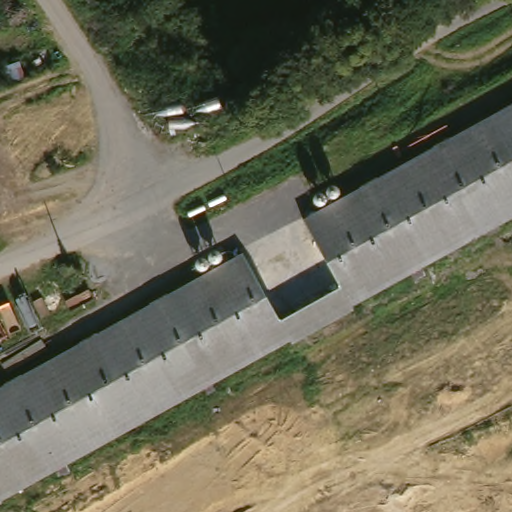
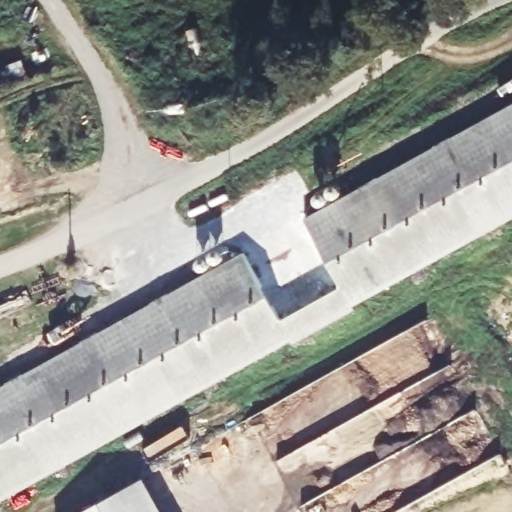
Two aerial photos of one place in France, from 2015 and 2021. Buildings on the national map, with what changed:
unchanged [(23,378),(245,257),(285,324),(346,289),(308,220),(512,107),(512,221),(320,325),(67,463),(0,500),(0,391),(23,378)]
new [(159,512),(81,512),(140,479),(159,512)]

